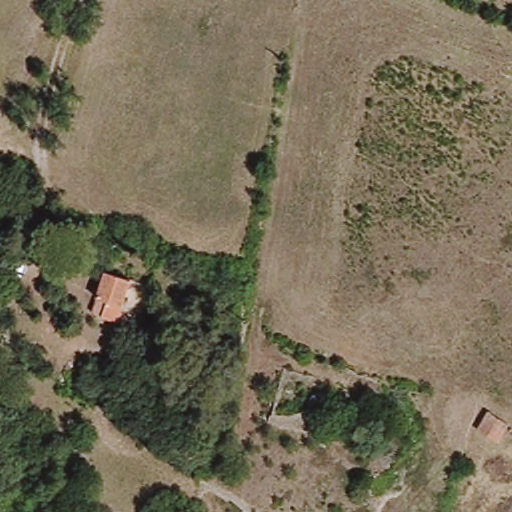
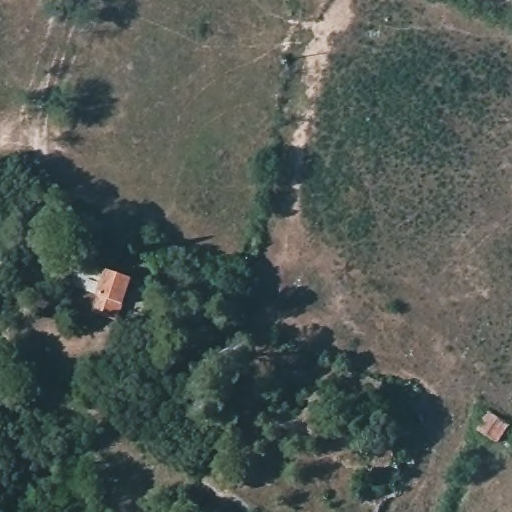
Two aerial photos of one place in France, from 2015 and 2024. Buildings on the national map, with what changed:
unchanged [(121,307),(96,298),(105,272),(129,281),(121,307)]
unchanged [(496,443),(475,430),(486,413),(506,425),(496,443)]

